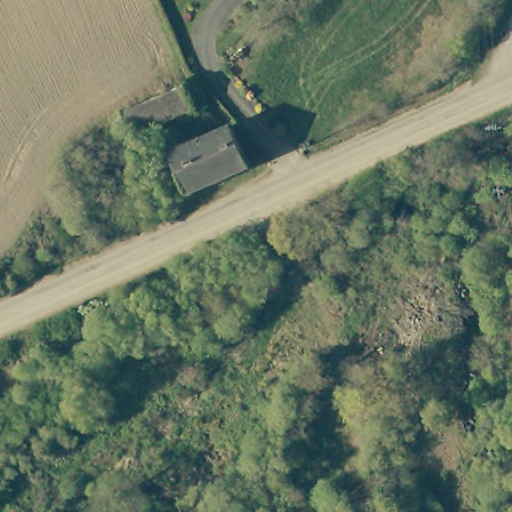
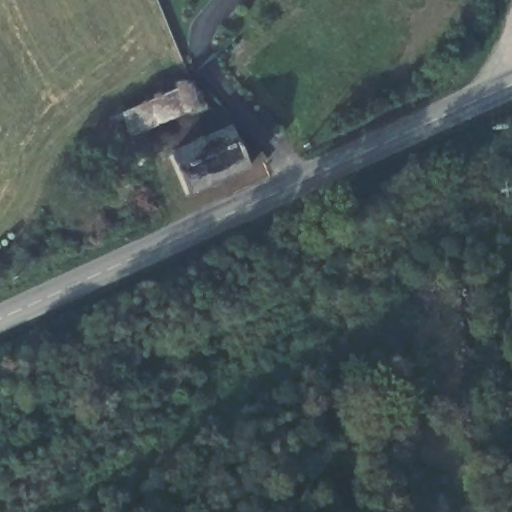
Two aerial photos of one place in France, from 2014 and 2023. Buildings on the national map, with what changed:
unchanged [(186,80),(194,102),(113,136),(104,114),(165,87),(186,80)]
unchanged [(231,126),(245,159),(182,186),(168,153),(231,126)]

